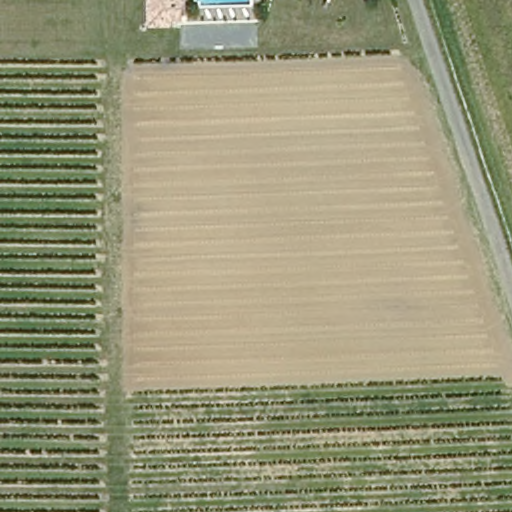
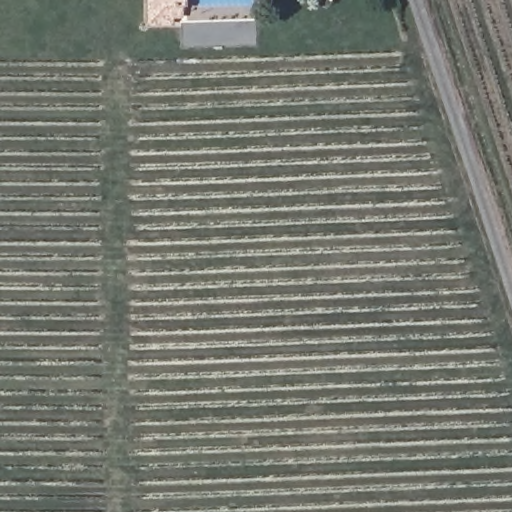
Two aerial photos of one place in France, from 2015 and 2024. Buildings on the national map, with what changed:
unchanged [(147,24),(147,16),(146,5),(146,0),(181,0),(182,7),(180,7),(180,16),(171,16),(170,24),(147,24)]

